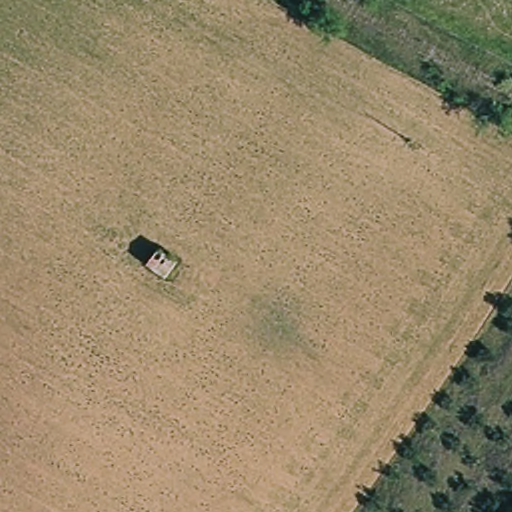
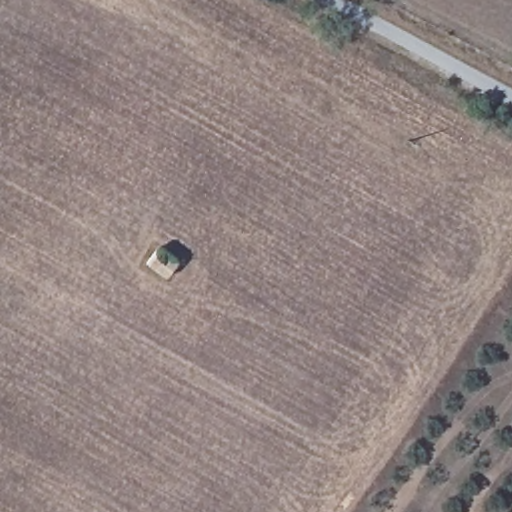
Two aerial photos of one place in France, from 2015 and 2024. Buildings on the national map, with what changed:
unchanged [(167,274),(151,263),(161,249),(176,261),(167,274)]

